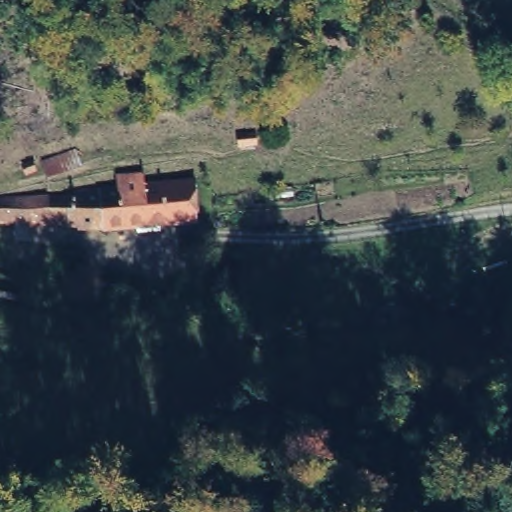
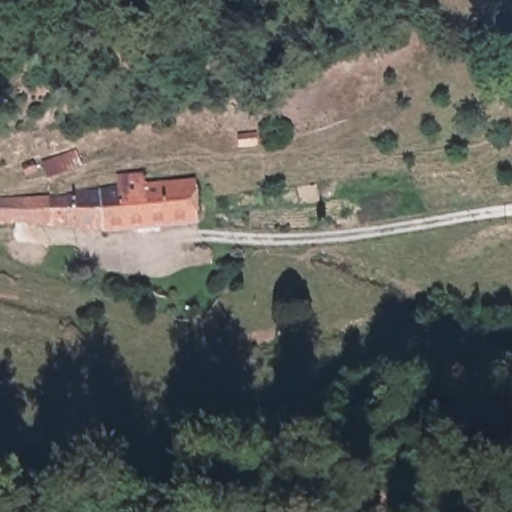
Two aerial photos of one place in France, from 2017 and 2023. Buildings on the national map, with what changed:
unchanged [(107,167),(141,165),(142,179),(200,176),(202,216),(98,229),(96,217),(0,221),(0,191),(107,184),(107,167)]
unchanged [(339,210),(305,212),(304,194),(337,190),(339,210)]

